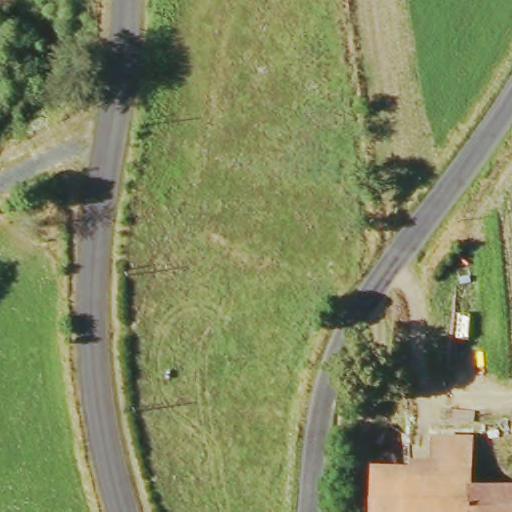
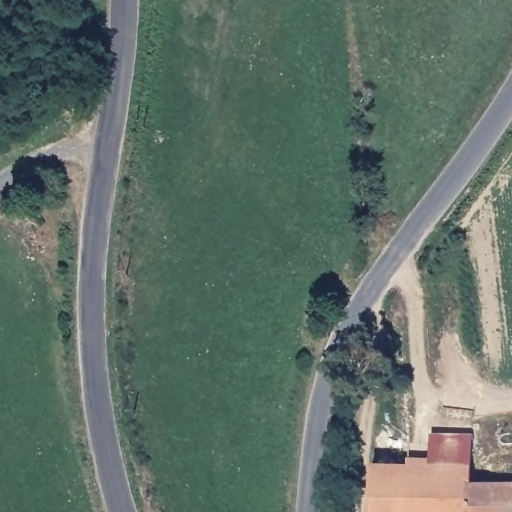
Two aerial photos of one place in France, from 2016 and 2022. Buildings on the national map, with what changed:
unchanged [(430,468),(430,437),(469,437),(469,467),(430,468)]
unchanged [(372,468),(430,468),(469,467),(471,489),(512,488),(512,512),(376,512),(372,468)]

